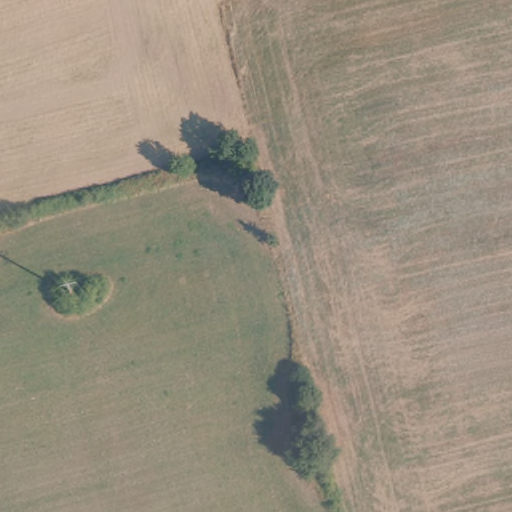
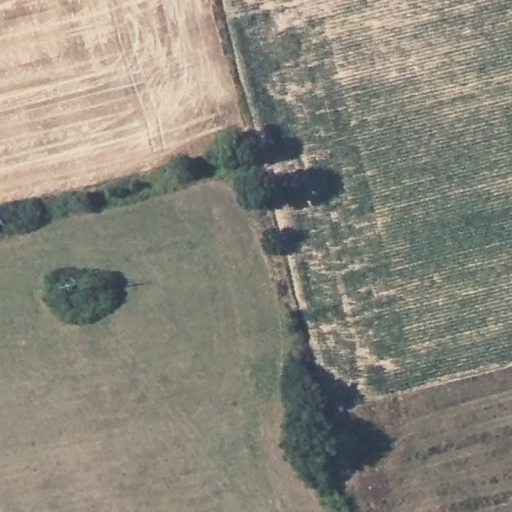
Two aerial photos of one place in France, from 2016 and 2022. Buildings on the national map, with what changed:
[]

